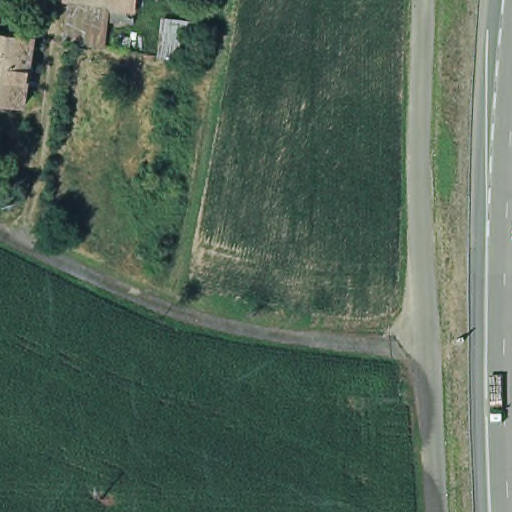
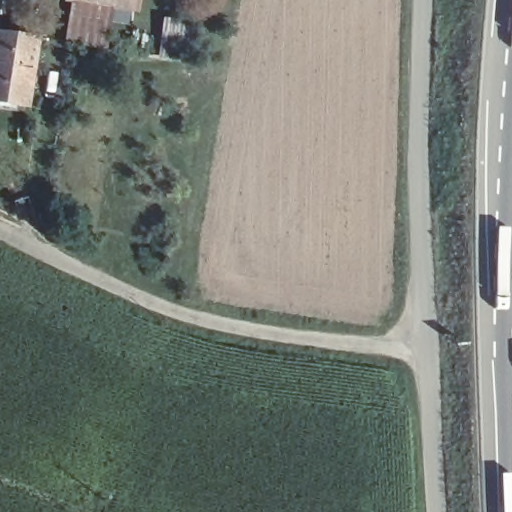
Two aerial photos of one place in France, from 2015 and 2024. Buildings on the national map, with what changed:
unchanged [(60,16),(62,0),(131,0),(128,27),(124,26),(60,16)]
unchanged [(120,64),(87,59),(90,51),(55,46),(60,16),(124,26),(120,64)]
unchanged [(20,106),(0,102),(0,32),(30,36),(20,106)]

